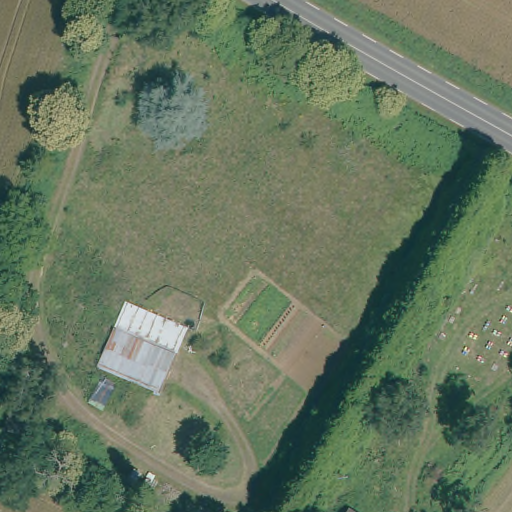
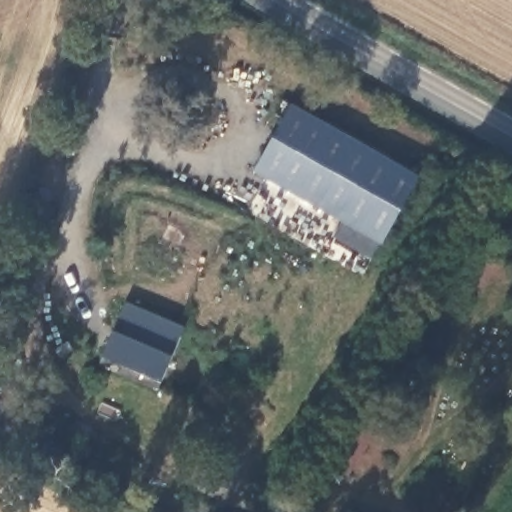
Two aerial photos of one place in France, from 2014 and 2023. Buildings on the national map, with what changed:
new [(286,103),(410,174),(366,252),(336,234),(342,223),(248,169),(286,103)]
new [(187,329),(175,354),(158,393),(97,365),(113,328),(125,301),(187,329)]
unchanged [(352,512),(351,512),(351,511),(352,512)]

